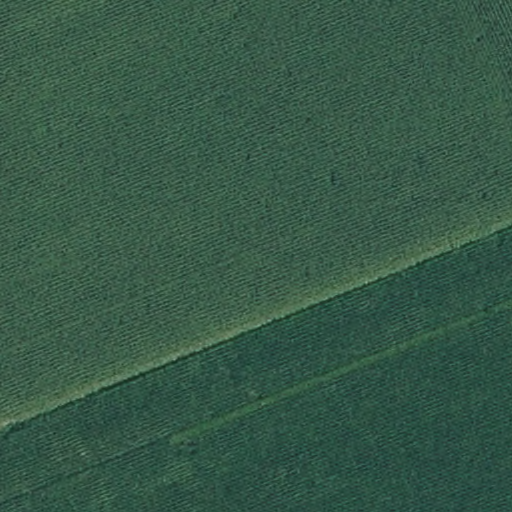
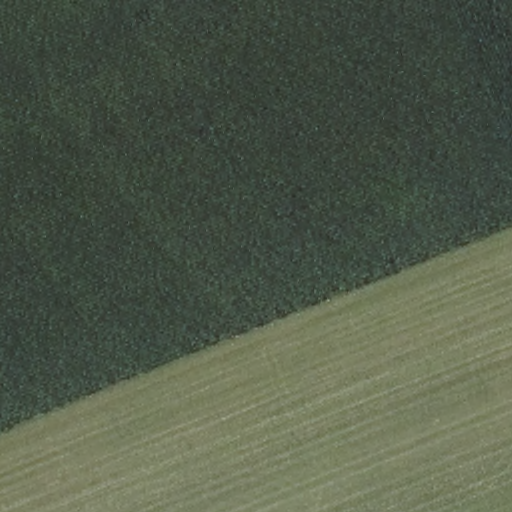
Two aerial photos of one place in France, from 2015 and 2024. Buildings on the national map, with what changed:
[]

